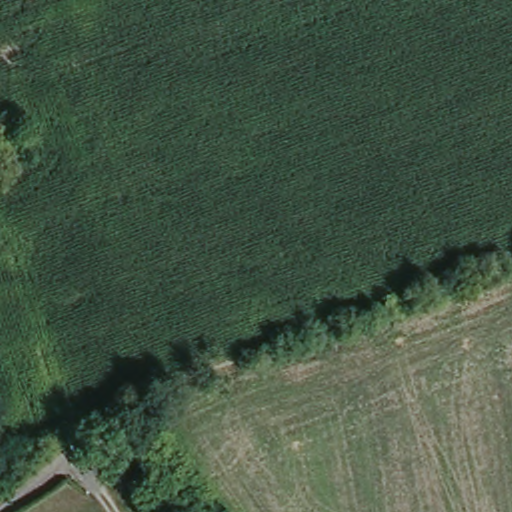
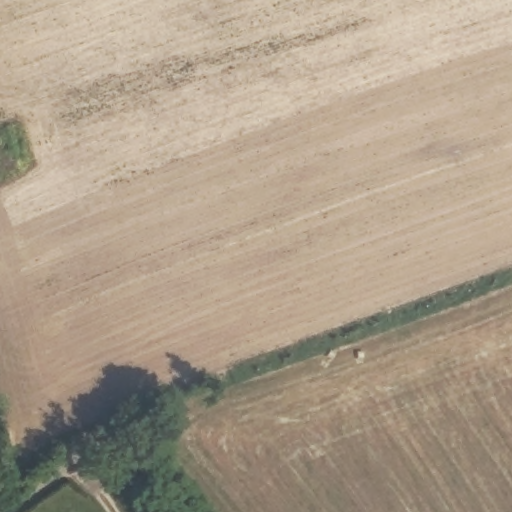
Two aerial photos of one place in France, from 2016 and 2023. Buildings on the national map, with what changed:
unchanged [(24,184),(0,189),(0,150),(15,146),(24,184)]

